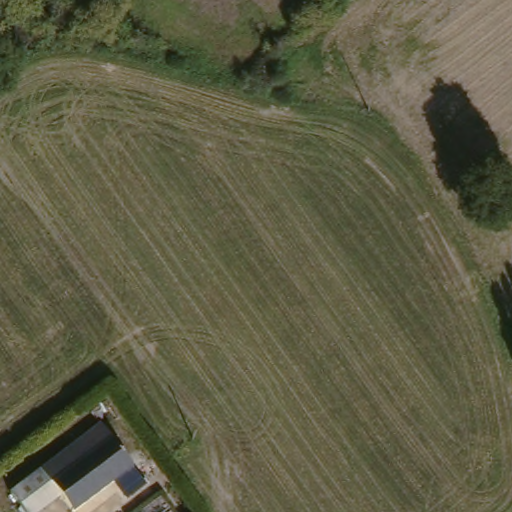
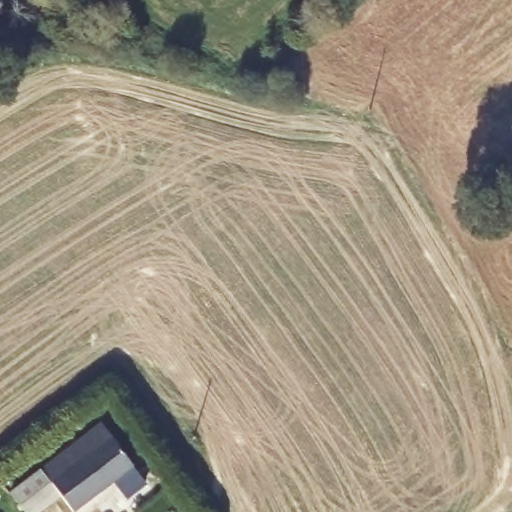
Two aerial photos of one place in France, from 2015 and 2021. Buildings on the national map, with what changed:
unchanged [(105,420),(135,459),(75,507),(64,492),(56,480),(78,465),(66,449),(105,420)]
unchanged [(37,512),(2,512),(0,509),(0,507),(18,496),(13,489),(66,449),(78,465),(56,480),(64,492),(37,512)]

